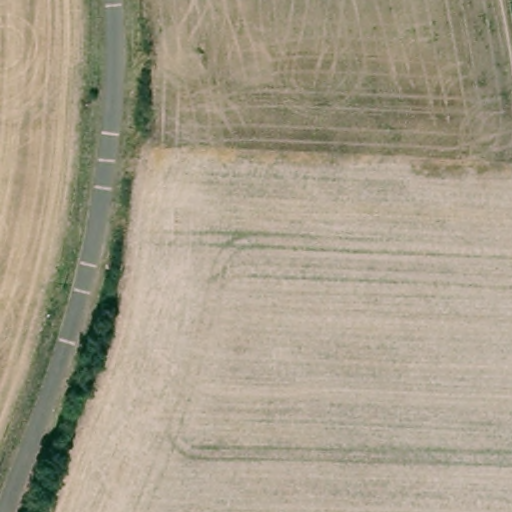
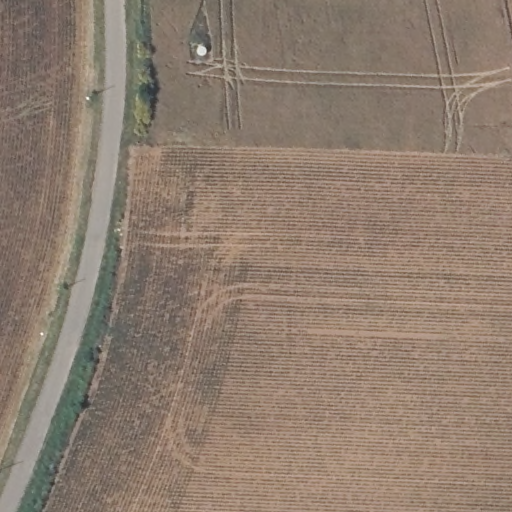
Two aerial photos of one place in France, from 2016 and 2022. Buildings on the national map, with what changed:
[]

